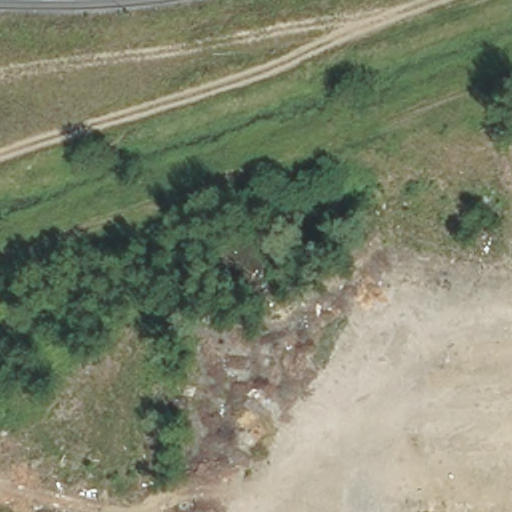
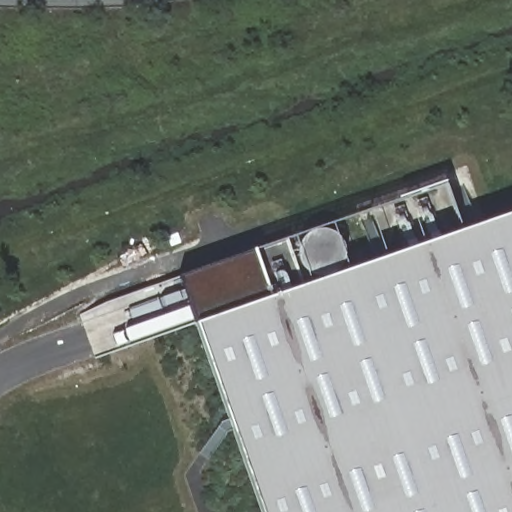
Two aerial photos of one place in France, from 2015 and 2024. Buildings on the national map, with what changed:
new [(195,324),(178,276),(255,250),(287,238),(303,286),(512,213),(512,512),(260,512),(195,324)]
new [(344,259),(341,267),(335,273),(327,276),(319,277),(311,275),(304,271),(299,264),(297,256),(297,247),(300,240),(306,234),(314,230),(322,229),(330,231),(337,236),(342,242),(344,250),(344,259)]

